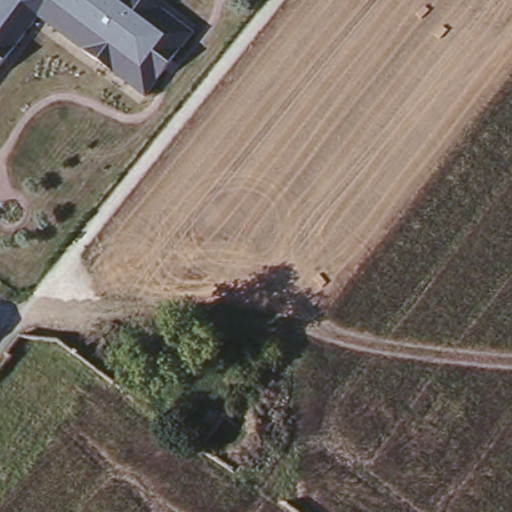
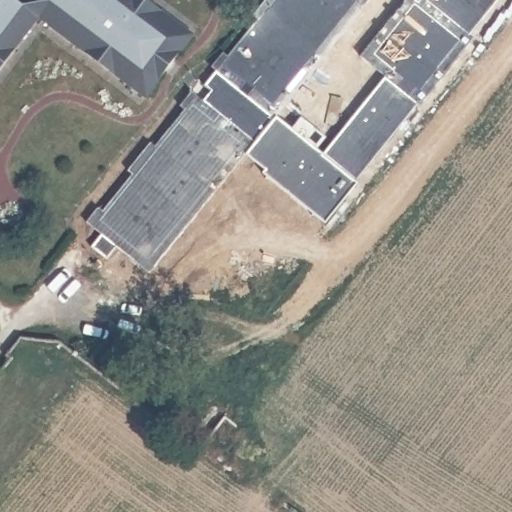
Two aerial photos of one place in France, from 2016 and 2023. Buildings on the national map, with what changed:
unchanged [(192,35),(144,99),(39,19),(0,70),(0,0),(146,0),(192,35)]
new [(104,235),(88,224),(99,209),(104,212),(133,175),(128,172),(151,144),(156,147),(185,111),(180,107),(193,92),(203,101),(211,90),(207,85),(218,71),(212,67),(224,53),(229,57),(259,21),(254,18),(268,0),(366,0),(271,111),(291,128),(301,116),(327,139),(317,151),(324,155),(386,78),(361,57),(406,0),(498,0),(470,36),(474,39),(422,108),(418,104),(354,184),(357,186),(326,225),(263,176),(266,172),(238,149),(209,188),(215,192),(150,275),(117,248),(107,260),(92,249),(104,235)]

